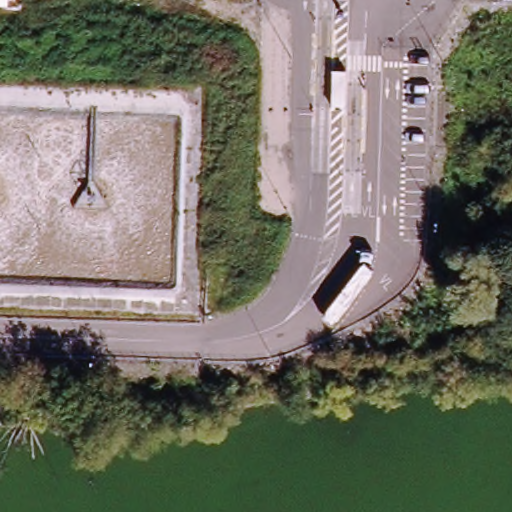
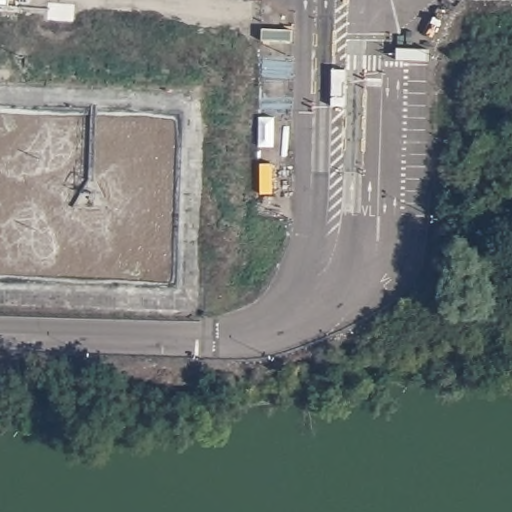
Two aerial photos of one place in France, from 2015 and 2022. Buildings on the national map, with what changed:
unchanged [(0,4),(0,0),(9,0),(9,5),(0,4)]

